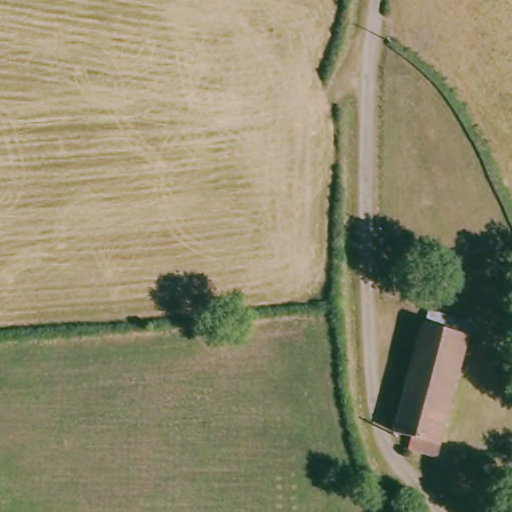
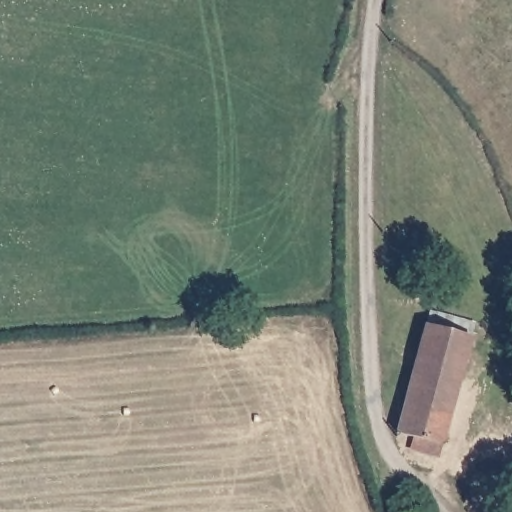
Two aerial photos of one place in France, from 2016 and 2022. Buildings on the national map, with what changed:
unchanged [(434,310),(479,320),(474,339),(447,444),(434,440),(429,452),(417,447),(419,437),(402,433),(404,422),(405,422),(429,329),(434,310)]

